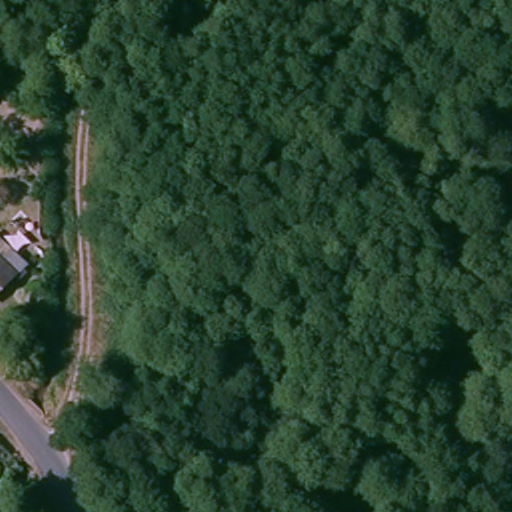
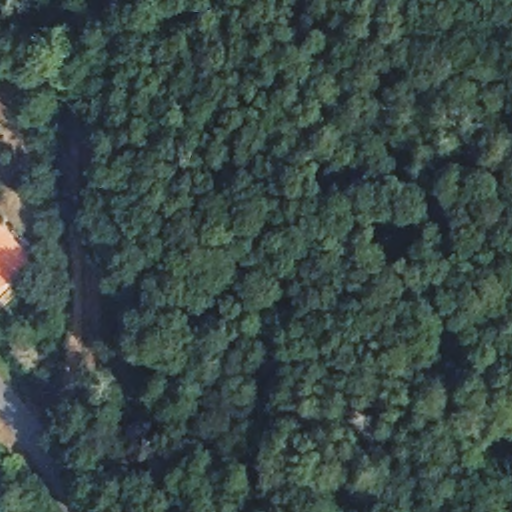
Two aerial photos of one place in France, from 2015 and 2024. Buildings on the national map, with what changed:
unchanged [(31,249),(22,256),(31,268),(0,297),(0,239),(13,230),(31,249)]

